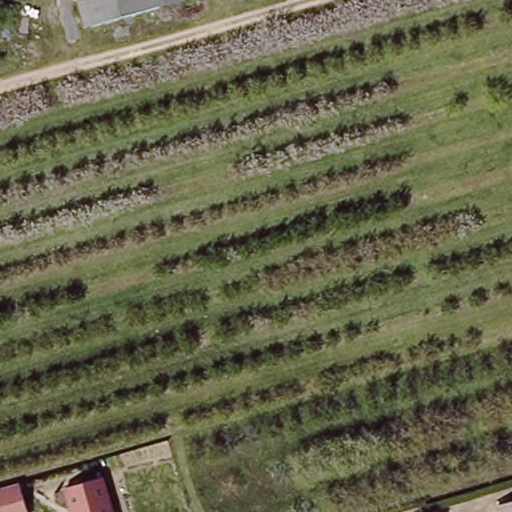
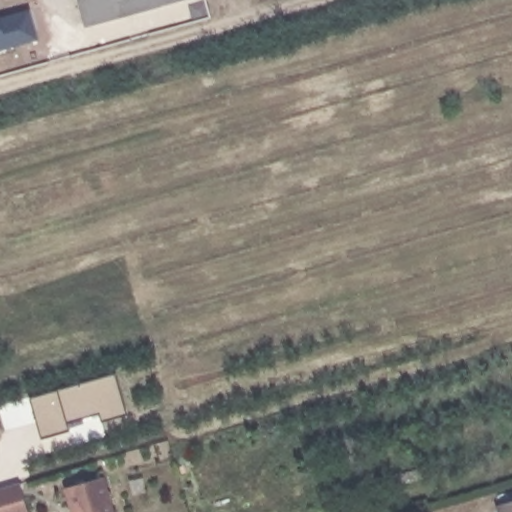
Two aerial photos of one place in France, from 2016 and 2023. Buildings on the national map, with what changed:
unchanged [(85,30),(76,0),(193,0),(85,30)]
new [(116,376),(128,418),(102,425),(99,417),(68,426),(70,434),(41,442),(29,401),(116,376)]
unchanged [(114,512),(70,512),(63,486),(103,474),(114,512)]
unchanged [(31,512),(0,512),(0,483),(20,478),(31,512)]
unchanged [(497,512),(497,510),(512,507),(512,512),(497,512)]

